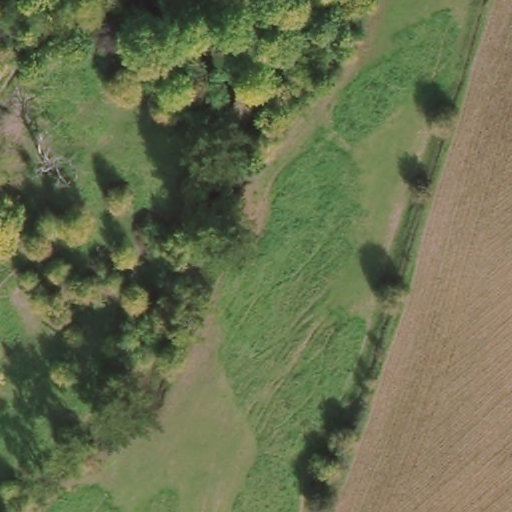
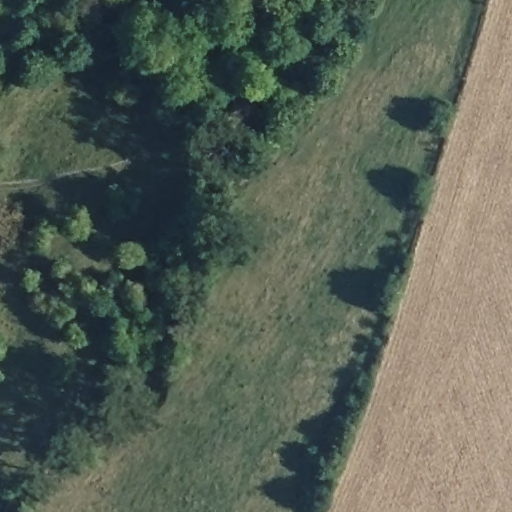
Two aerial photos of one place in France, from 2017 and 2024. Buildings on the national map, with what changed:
unchanged [(271,107),(253,96),(276,60),(294,72),(271,107)]

